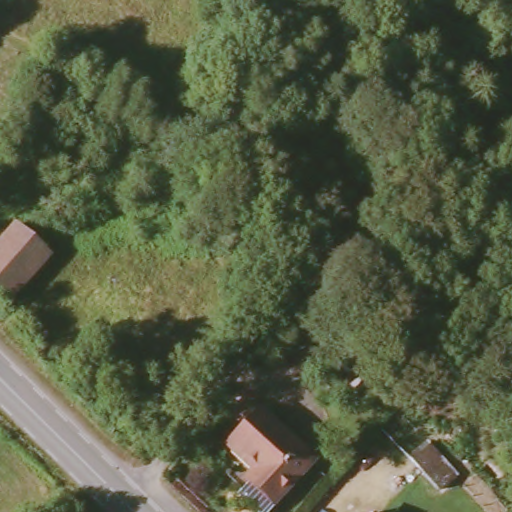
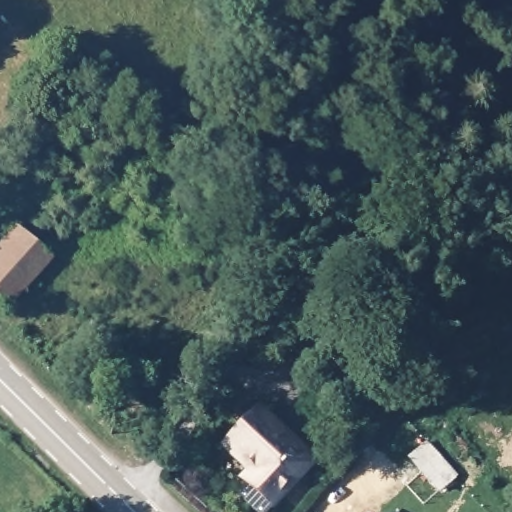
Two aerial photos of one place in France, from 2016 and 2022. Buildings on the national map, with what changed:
unchanged [(374,248),(345,279),(315,253),(343,220),(374,248)]
unchanged [(7,299),(0,293),(0,237),(12,222),(48,252),(7,299)]
unchanged [(345,279),(320,307),(290,281),(315,253),(345,279)]
unchanged [(245,483),(253,474),(224,449),(255,414),(309,461),(270,505),(264,512),(252,512),(233,496),(245,483)]
unchanged [(458,475),(442,488),(415,457),(432,443),(458,475)]
unchanged [(358,512),(365,505),(371,512),(358,512)]

